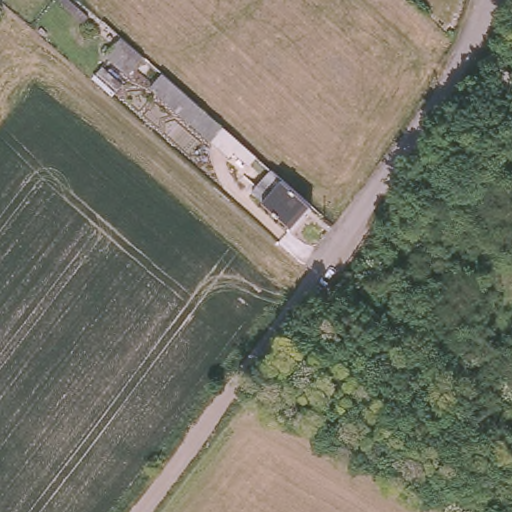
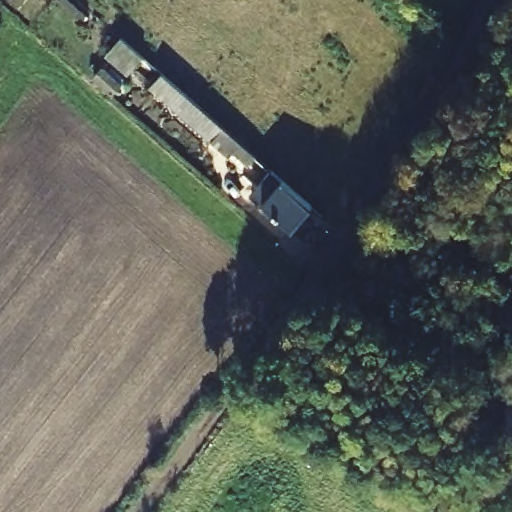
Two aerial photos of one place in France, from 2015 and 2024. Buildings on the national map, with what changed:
unchanged [(127,74),(106,55),(120,39),(141,59),(127,74)]
unchanged [(112,95),(92,79),(102,68),(121,84),(112,95)]
unchanged [(235,151),(228,156),(150,86),(162,73),(257,157),(250,164),(235,151)]
unchanged [(292,227),(282,220),(280,219),(265,206),(252,192),(272,170),(312,206),(292,227)]

